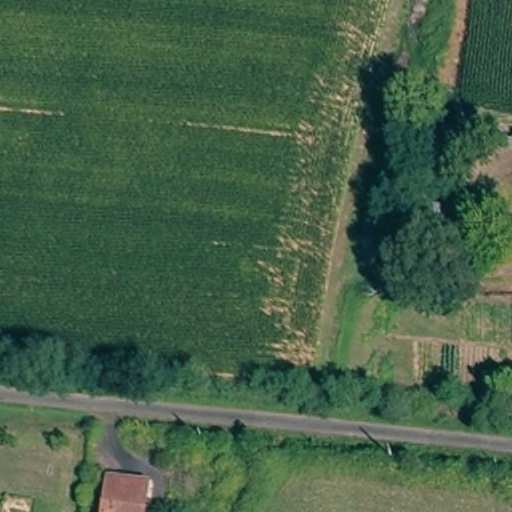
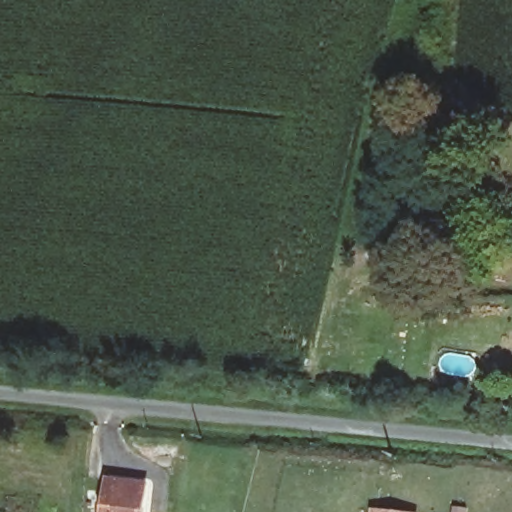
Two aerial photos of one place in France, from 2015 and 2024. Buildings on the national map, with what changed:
unchanged [(141,512),(101,512),(104,480),(144,483),(141,512)]
new [(371,512),(372,507),(414,512),(371,512)]

